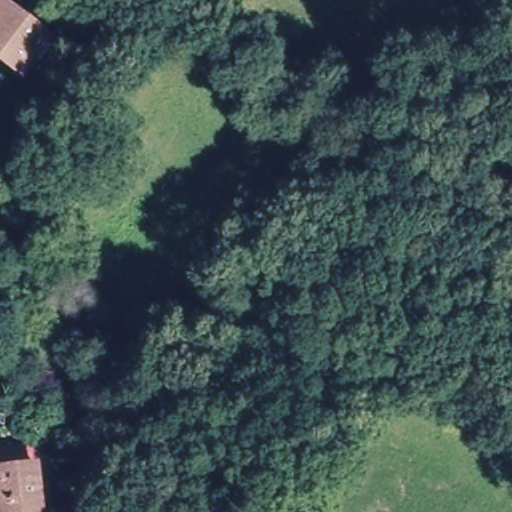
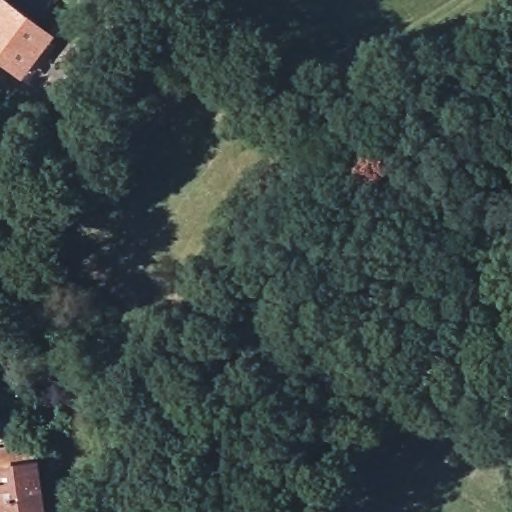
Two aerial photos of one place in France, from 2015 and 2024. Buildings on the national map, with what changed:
unchanged [(22,71),(0,55),(0,0),(3,0),(50,35),(22,71)]
unchanged [(43,512),(2,512),(0,499),(0,467),(35,462),(43,512)]

